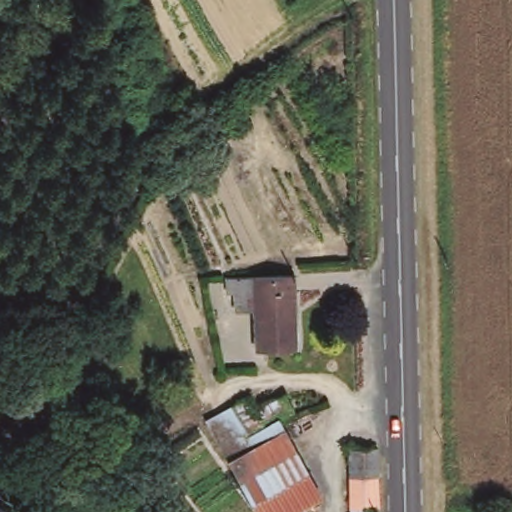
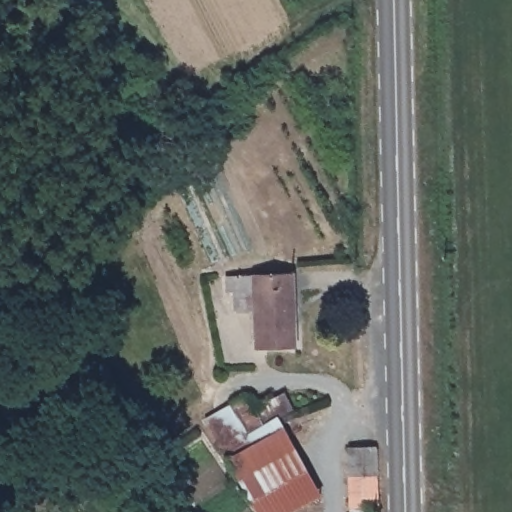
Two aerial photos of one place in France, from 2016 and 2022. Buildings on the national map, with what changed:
unchanged [(199,124),(206,134),(185,150),(181,145),(179,141),(199,124)]
unchanged [(296,352),(257,353),(255,312),(242,311),(242,296),(227,295),(227,278),(294,277),(296,352)]
unchanged [(260,409),(285,395),(300,412),(287,420),(323,495),(295,512),(260,512),(228,461),(212,417),(250,396),(260,409)]
unchanged [(355,510),(353,448),(363,448),(380,448),(381,507),(355,510)]

